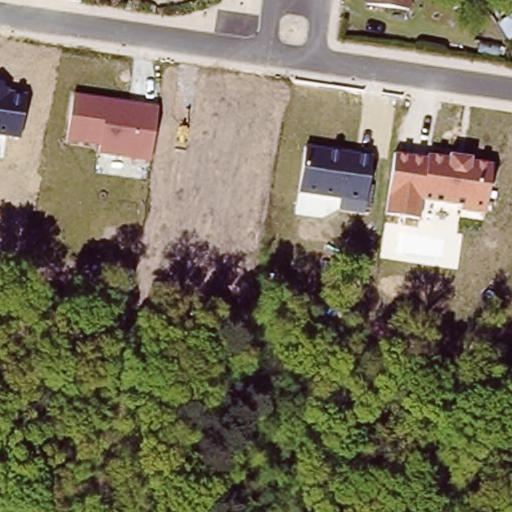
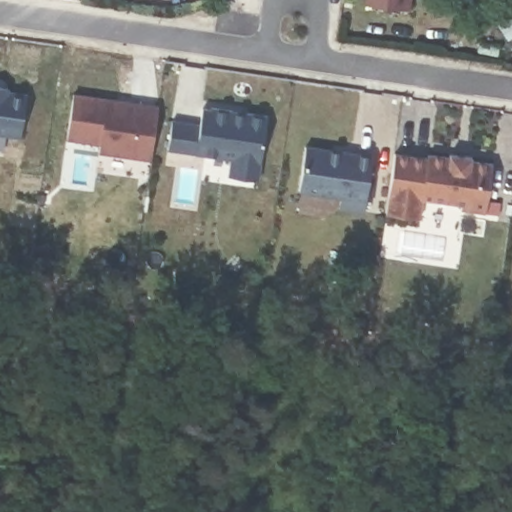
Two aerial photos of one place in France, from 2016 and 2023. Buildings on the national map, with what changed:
unchanged [(365,0),(407,0),(406,9),(365,0)]
unchanged [(8,92),(26,96),(21,138),(0,135),(0,85),(8,86),(8,92)]
unchanged [(73,94),(158,107),(150,163),(98,155),(98,145),(68,141),(73,94)]
new [(258,180),(228,175),(230,160),(195,154),(167,150),(171,118),(199,122),(202,108),(213,110),(213,107),(266,115),(258,180)]
unchanged [(304,146),(373,156),(367,200),(366,214),(339,210),(339,199),(298,192),(304,146)]
unchanged [(395,156),(428,161),(429,154),(494,165),(487,214),(457,210),(458,205),(422,201),(419,219),(387,215),(395,156)]

